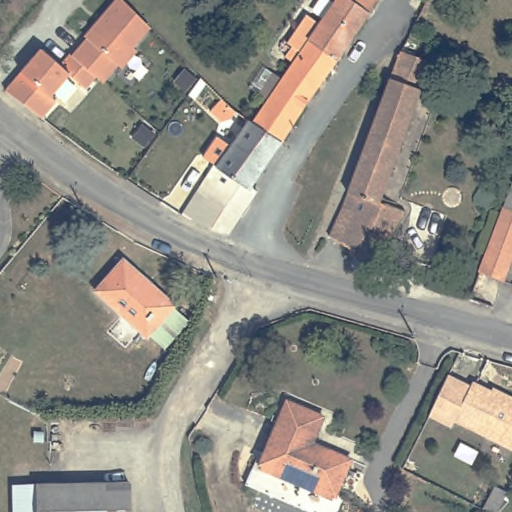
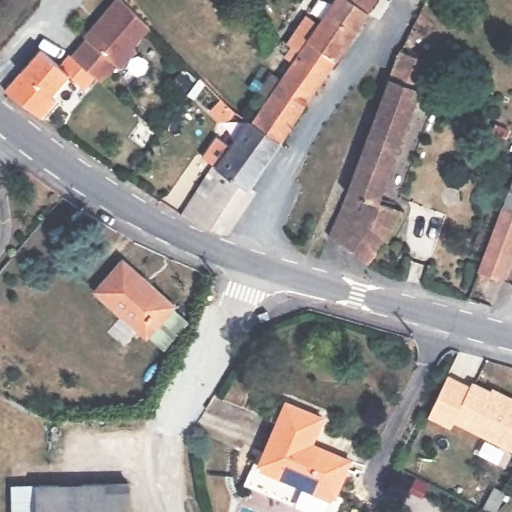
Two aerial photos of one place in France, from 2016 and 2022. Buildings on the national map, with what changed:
unchanged [(152,27),(104,84),(96,77),(87,88),(71,74),(52,97),(56,102),(41,119),(7,90),(23,70),(42,47),(61,64),(70,54),(73,57),(87,40),(84,37),(115,0),(122,0),(152,27)]
unchanged [(227,131),(238,139),(256,112),(258,114),(271,97),(305,44),(293,36),(302,24),(313,7),(325,15),(336,0),(377,0),(375,5),(307,107),(298,117),(286,136),(257,179),(262,182),(235,226),(189,206),(222,154),(215,150),(227,131)]
unchanged [(357,244),(335,229),(362,157),(406,42),(435,55),(386,194),(407,201),(393,229),(392,232),(373,257),(357,244)]
unchanged [(222,115),(220,119),(211,111),(222,101),(229,107),(235,112),(227,120),(222,115)]
unchanged [(484,270),(512,197),(512,266),(507,279),(484,270)]
unchanged [(174,302),(145,332),(93,283),(122,252),(174,302)]
unchanged [(450,427),(429,417),(436,403),(448,377),(470,387),(472,382),(490,391),(492,387),(512,397),(512,453),(452,422),(450,427)]
unchanged [(327,401),(315,426),(356,445),(340,478),(353,485),(343,506),(257,465),(295,385),(327,401)]
unchanged [(131,480),(132,512),(41,512),(41,481),(131,480)]
unchanged [(503,493),(494,512),(478,512),(492,489),(503,493)]

